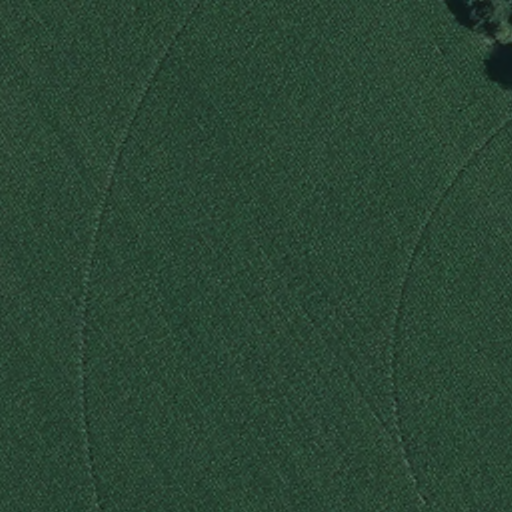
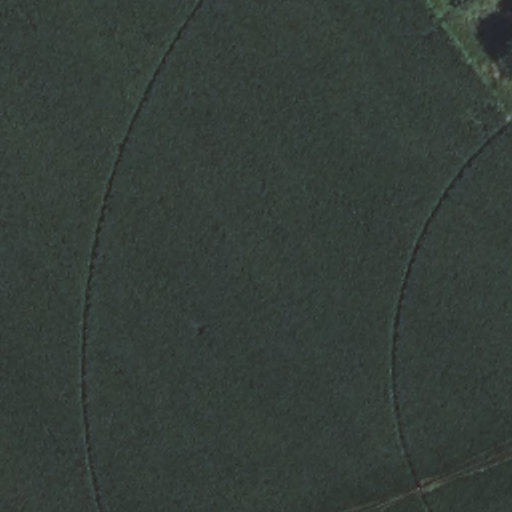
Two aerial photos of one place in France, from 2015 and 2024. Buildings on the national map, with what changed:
[]

